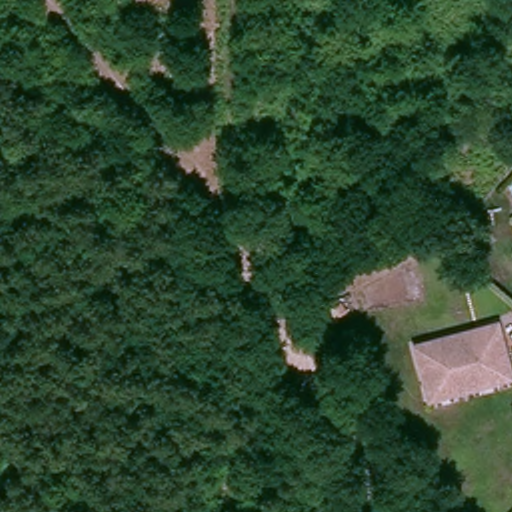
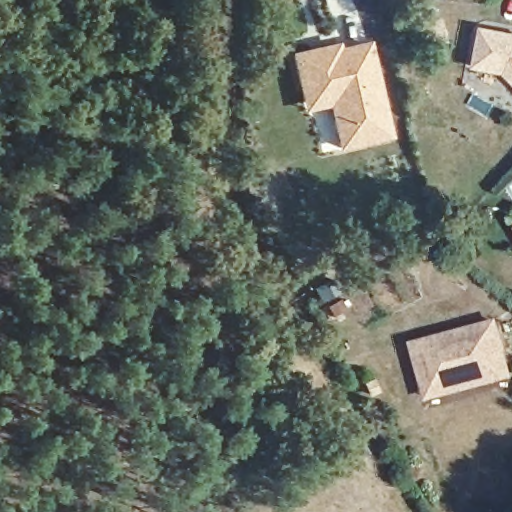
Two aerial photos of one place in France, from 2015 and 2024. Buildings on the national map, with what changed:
new [(506,77),(475,71),(481,30),(512,35),(512,83),(506,77)]
new [(329,108),(304,114),(290,54),(338,44),(340,49),(370,44),(392,139),(339,151),(329,108)]
demolished [(430,83),(451,78),(461,119),(470,116),(475,140),(425,153),(407,79),(428,74),(430,83)]
unchanged [(421,383),(406,346),(484,313),(490,327),(500,350),(506,364),(485,373),(468,381),(444,391),(427,398),(421,383)]

